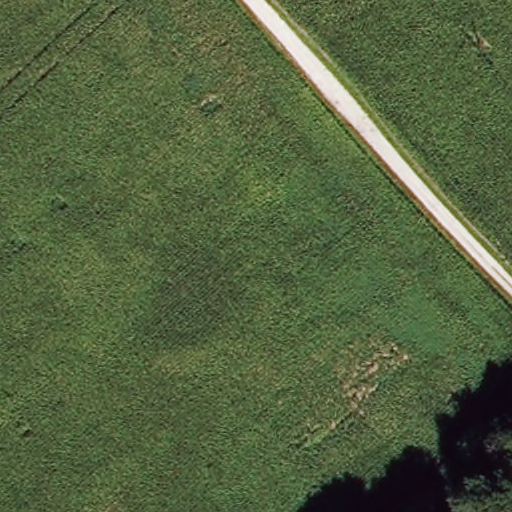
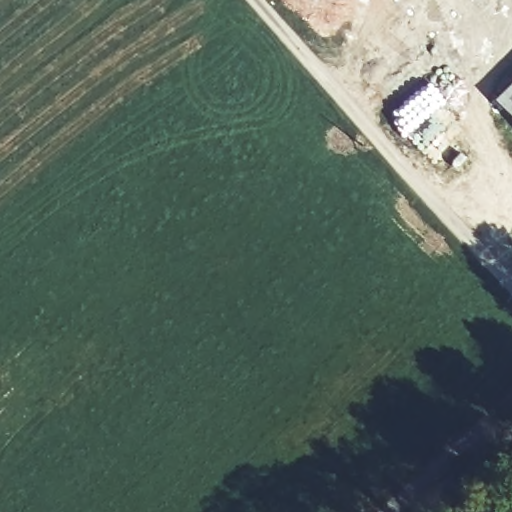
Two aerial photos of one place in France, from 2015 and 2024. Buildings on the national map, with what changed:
new [(512,84),(512,117),(495,100),(512,84)]

